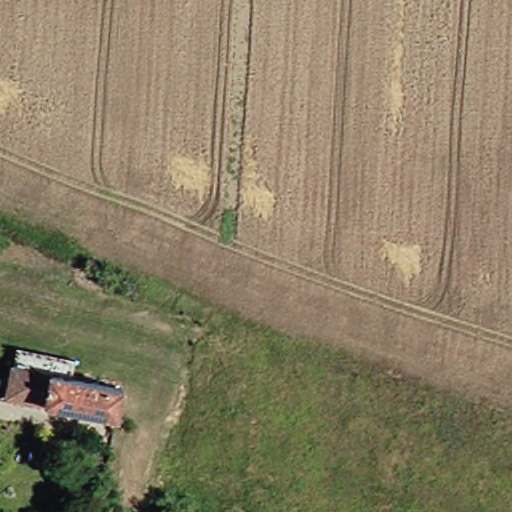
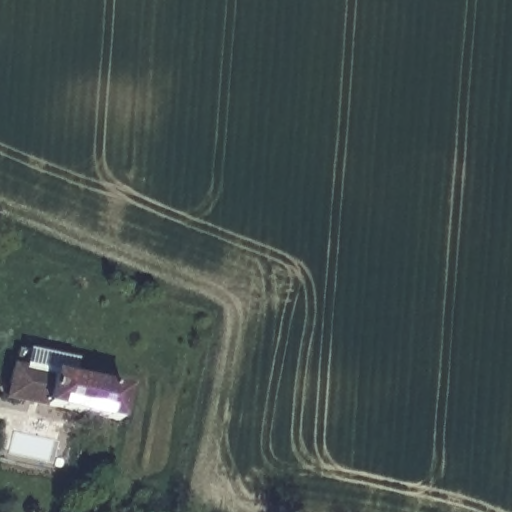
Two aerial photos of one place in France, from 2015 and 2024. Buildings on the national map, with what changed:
unchanged [(13,353),(71,365),(68,385),(9,373),(13,353)]
unchanged [(68,385),(118,395),(111,423),(3,400),(9,373),(68,385)]

